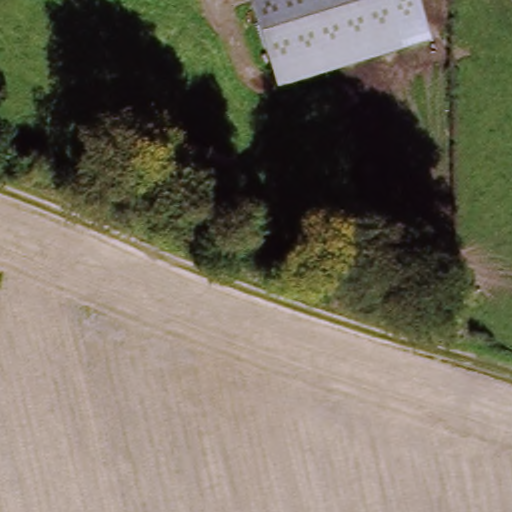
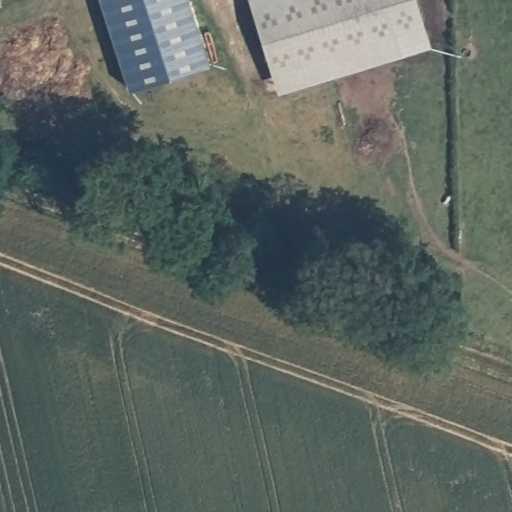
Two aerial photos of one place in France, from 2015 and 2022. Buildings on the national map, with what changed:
new [(206,71),(125,95),(98,0),(186,0),(206,71)]
unchanged [(254,0),(420,0),(432,39),(281,85),(254,0)]

